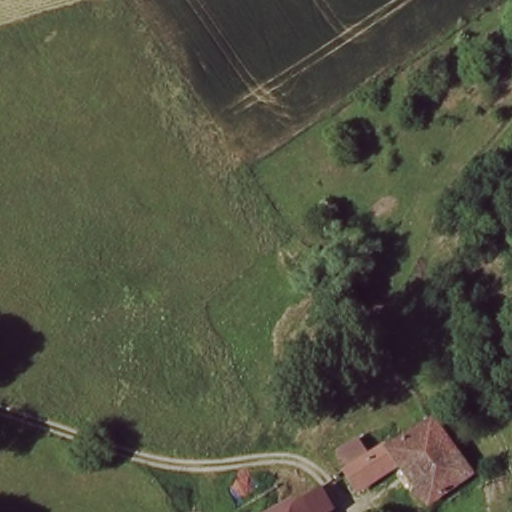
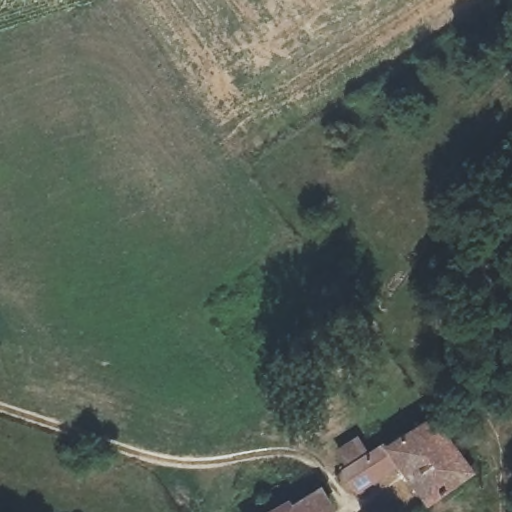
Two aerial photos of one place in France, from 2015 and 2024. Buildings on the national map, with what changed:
unchanged [(358,465),(400,440),(416,430),(432,420),(444,435),(476,473),(435,506),(400,470),(357,495),(350,484),(347,479),(344,474),(358,465)]
unchanged [(315,489),(319,487),(322,492),(326,498),(332,508),(326,512),(277,512),(304,496),(315,489)]

